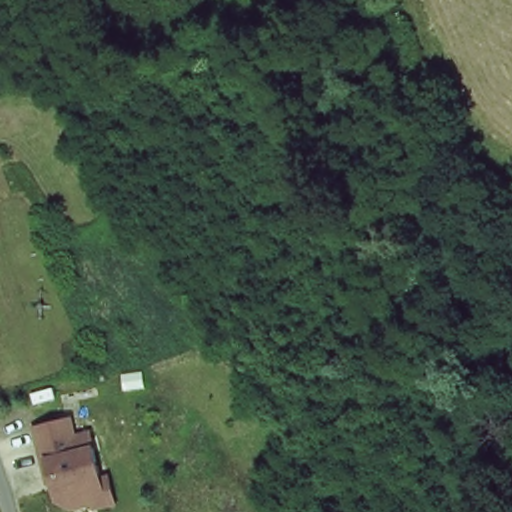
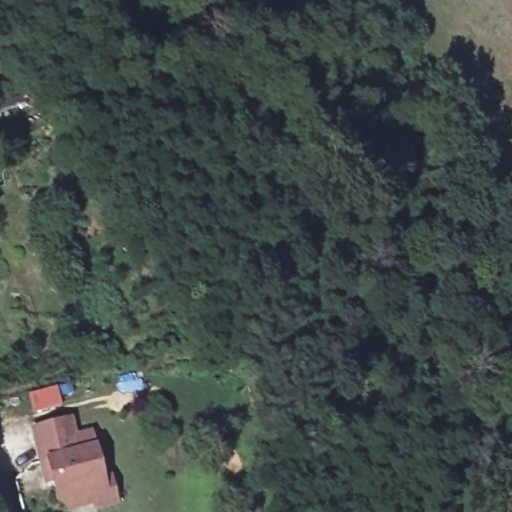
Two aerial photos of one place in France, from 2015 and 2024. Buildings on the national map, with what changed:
unchanged [(111,502),(56,508),(29,426),(69,414),(75,436),(92,431),(111,502)]

